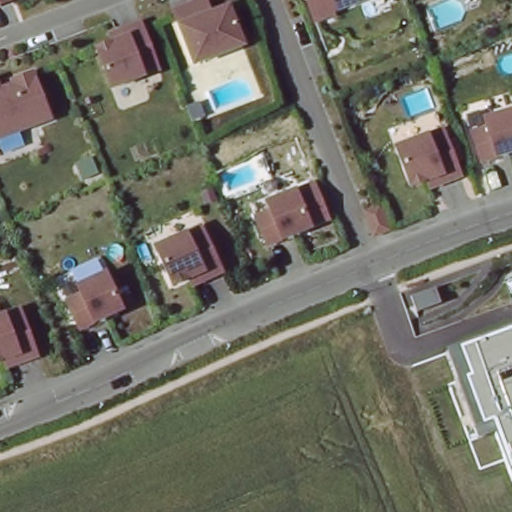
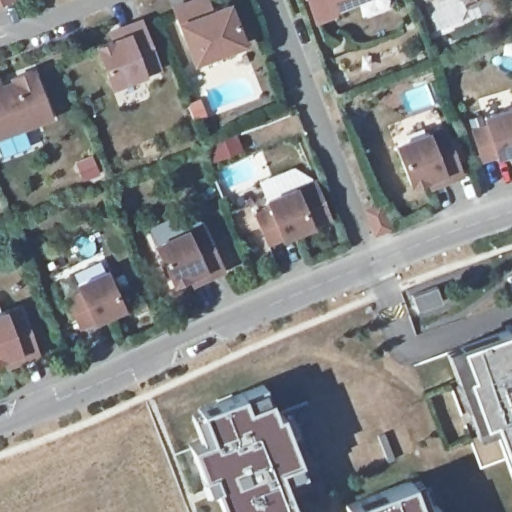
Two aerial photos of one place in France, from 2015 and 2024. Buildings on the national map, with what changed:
unchanged [(4,0),(0,1),(0,0),(4,0)]
unchanged [(194,61),(174,7),(193,0),(207,0),(211,11),(228,4),(240,36),(243,42),(227,49),(194,61)]
unchanged [(326,0),(355,0),(330,10),(326,0)]
unchanged [(110,32),(120,28),(140,20),(158,67),(111,86),(96,46),(113,40),(110,32)]
unchanged [(14,82),(12,77),(32,70),(50,116),(0,135),(0,87),(14,82)]
unchanged [(484,117),(512,108),(512,150),(481,159),(472,130),(487,126),(484,117)]
unchanged [(427,178),(410,184),(396,145),(443,127),(461,174),(440,182),(430,186),(427,178)]
unchanged [(295,188),(311,225),(268,242),(256,214),(270,209),(267,200),(295,188)]
unchanged [(376,206),(380,204),(389,227),(375,233),(366,210),(376,206)]
unchanged [(189,276),(173,283),(155,245),(201,224),(222,270),(202,278),(192,283),(189,276)]
unchanged [(106,271),(122,307),(80,326),(67,298),(81,292),(77,283),(106,271)]
unchanged [(3,357),(0,358),(0,314),(20,307),(37,354),(16,361),(6,365),(3,357)]
unchanged [(479,437),(446,349),(512,326),(512,473),(496,431),(479,437)]
new [(259,400),(266,423),(275,420),(286,451),(277,455),(285,481),(262,489),(269,512),(214,512),(207,490),(194,494),(182,458),(195,454),(186,426),(259,400)]
new [(410,505),(412,512),(389,512),(410,505)]

